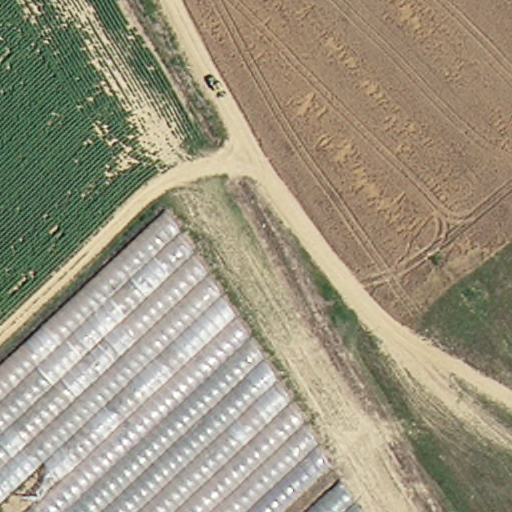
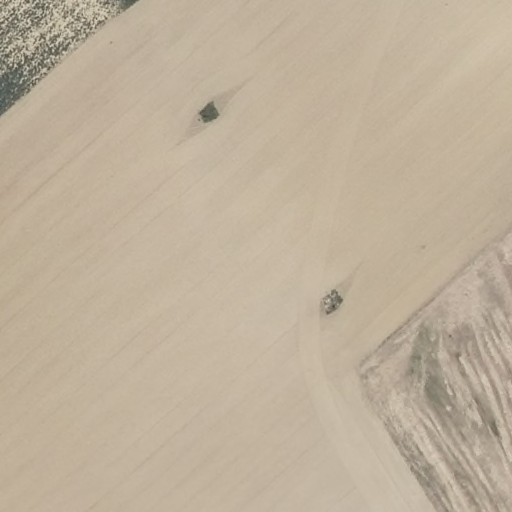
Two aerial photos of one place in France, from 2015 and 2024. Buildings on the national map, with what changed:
demolished [(0,512),(0,362),(158,218),(322,469),(277,512),(0,512)]
demolished [(313,512),(337,490),(352,512),(313,512)]

